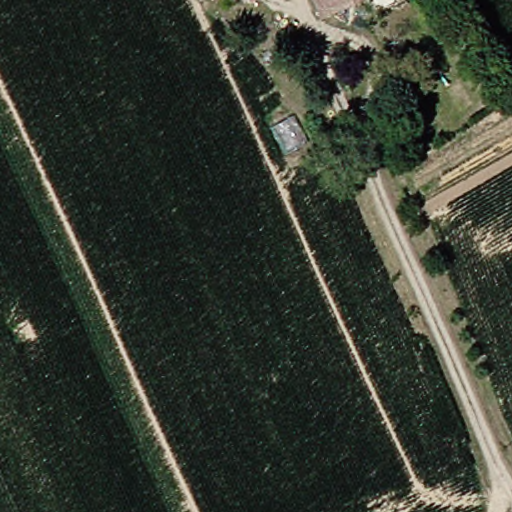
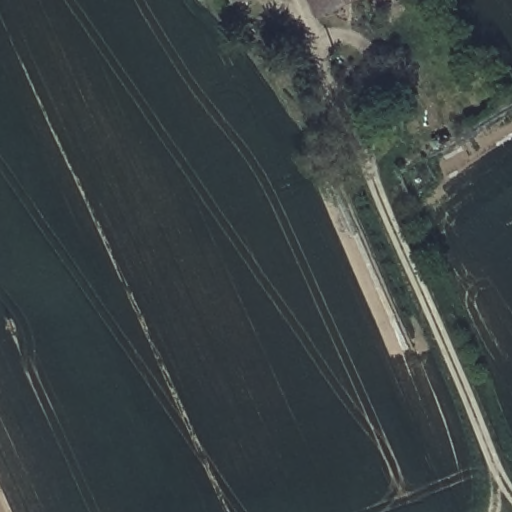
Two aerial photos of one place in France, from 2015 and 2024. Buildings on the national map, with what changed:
unchanged [(239,3),(237,0),(245,0),(239,3)]
unchanged [(311,15),(305,0),(345,0),(311,15)]

